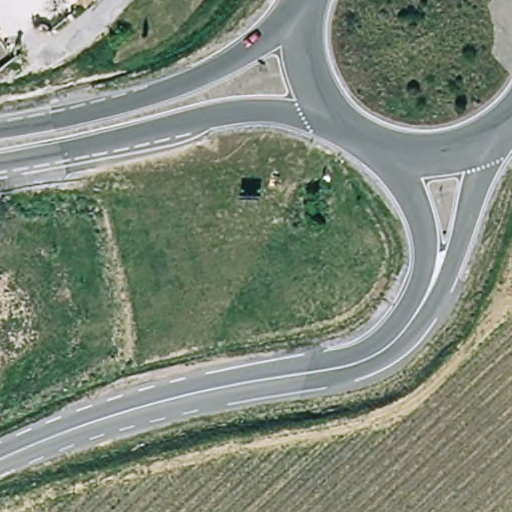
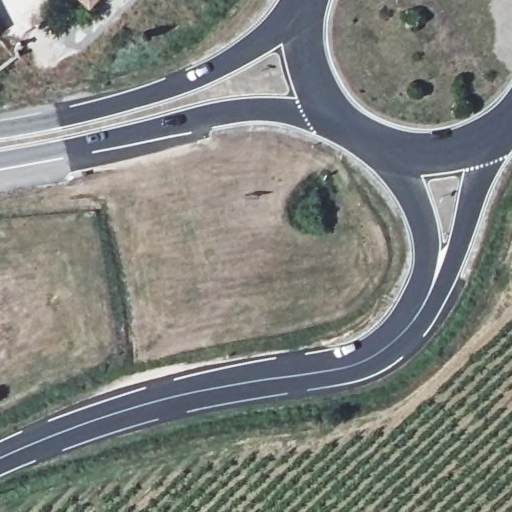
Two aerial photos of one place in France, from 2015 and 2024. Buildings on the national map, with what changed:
unchanged [(70,0),(89,0),(81,10),(70,0)]

